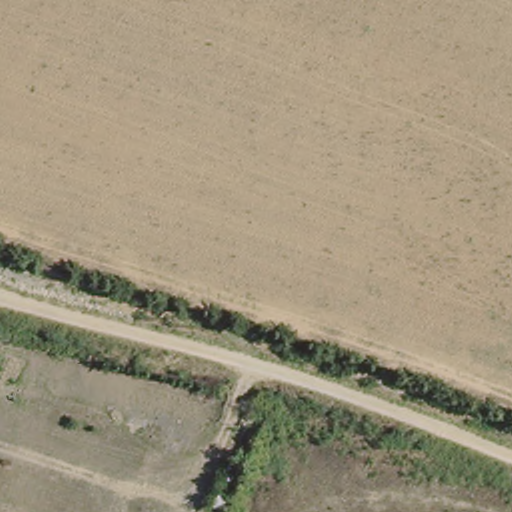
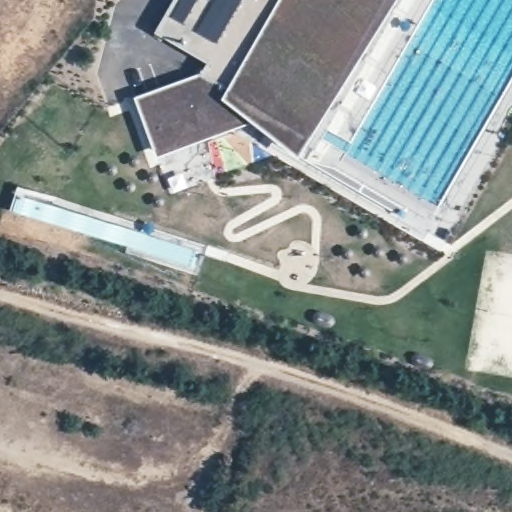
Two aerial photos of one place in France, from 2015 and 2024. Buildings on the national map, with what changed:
new [(253,123),(157,156),(136,99),(200,73),(208,63),(156,33),(175,0),(397,0),(298,156),(253,123)]
new [(330,162),(406,208),(401,215),(326,170),(330,162)]

